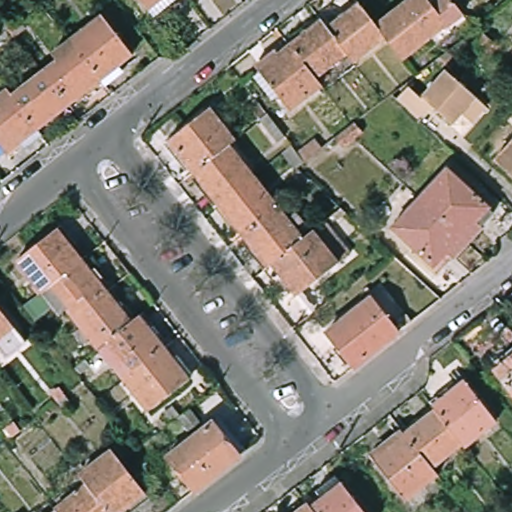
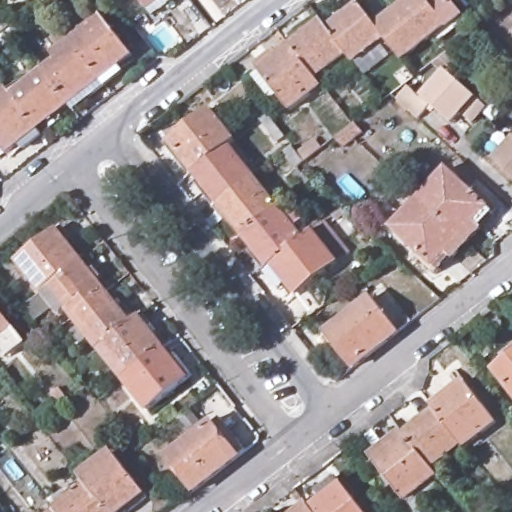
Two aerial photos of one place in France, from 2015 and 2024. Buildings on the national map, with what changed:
unchanged [(148,11),(140,0),(161,0),(148,11)]
unchanged [(379,33),(371,24),(399,0),(452,0),(460,11),(448,21),(446,19),(398,57),(379,33)]
unchanged [(343,49),(325,26),(356,1),(373,22),(371,24),(379,33),(349,57),(343,49)]
unchanged [(285,43),(284,42),(317,16),(317,17),(325,26),(343,49),(311,75),(285,43)]
unchanged [(75,50),(70,45),(104,19),(134,58),(101,84),(75,50)]
unchanged [(10,28),(19,22),(25,31),(16,38),(0,50),(0,36),(9,29),(10,28)]
unchanged [(470,55),(483,41),(499,55),(486,69),(470,55)]
unchanged [(284,42),(285,43),(311,75),(316,82),(286,105),(253,66),(284,42)]
unchanged [(44,74),(75,50),(101,84),(70,107),(44,74)]
unchanged [(456,59),(465,70),(458,76),(456,73),(448,79),(441,71),(456,59)]
unchanged [(39,132),(13,99),(44,74),(70,107),(39,132)]
unchanged [(418,90),(431,107),(455,80),(494,114),(480,130),(469,121),(460,131),(440,114),(427,128),(417,119),(404,101),(418,90)]
unchanged [(0,146),(0,99),(9,93),(13,99),(39,132),(8,156),(0,146)]
unchanged [(196,170),(170,137),(210,105),(236,139),(228,145),(196,170)]
unchanged [(332,144),(336,148),(348,137),(350,134),(360,143),(358,145),(341,164),(325,149),(332,144)]
unchanged [(491,158),(501,147),(512,135),(512,176),(491,158)]
unchanged [(196,170),(228,145),(253,176),(221,202),(196,170)]
unchanged [(318,176),(309,183),(297,172),(306,164),(308,163),(318,176)]
unchanged [(221,202),(253,176),(278,208),(245,234),(221,202)]
unchanged [(421,203),(448,176),(491,213),(463,240),(421,203)]
unchanged [(434,269),(392,231),(421,203),(463,240),(434,269)]
unchanged [(278,208),(303,239),(275,261),(272,263),(270,265),(245,234),(278,208)]
unchanged [(272,263),(275,261),(303,239),(310,234),(329,219),(353,248),(296,293),(272,263)]
unchanged [(13,261),(52,230),(77,262),(38,293),(13,261)]
unchanged [(38,293),(77,262),(101,293),(69,319),(55,302),(36,316),(26,303),(38,293)]
unchanged [(69,319),(101,293),(126,324),(101,343),(93,349),(69,319)]
unchanged [(355,364),(327,330),(373,294),(400,329),(355,364)]
unchanged [(2,360),(0,358),(0,315),(23,344),(2,360)]
unchanged [(126,376),(101,343),(126,324),(134,317),(159,350),(126,376)]
unchanged [(512,341),(512,393),(487,361),(512,341)]
unchanged [(185,382),(145,414),(119,381),(126,376),(159,350),(185,382)]
unchanged [(458,379),(493,423),(462,449),(457,444),(429,409),(426,404),(458,379)]
unchanged [(63,412),(58,405),(52,397),(60,391),(67,398),(72,405),(63,412)]
unchanged [(426,469),(398,434),(429,409),(457,444),(426,469)]
unchanged [(169,428),(162,420),(173,412),(180,420),(169,428)]
unchanged [(161,456),(207,420),(236,458),(235,459),(190,493),(161,456)]
unchanged [(11,442),(4,433),(13,426),(19,435),(11,442)]
unchanged [(399,499),(367,459),(398,434),(426,469),(430,474),(399,499)]
unchanged [(105,512),(86,488),(80,479),(78,477),(112,450),(146,494),(122,512),(105,512)]
unchanged [(105,512),(56,512),(86,488),(105,512)]
unchanged [(360,512),(310,512),(341,488),(360,512)]
unchanged [(502,512),(509,507),(512,511),(512,512),(502,512)]

